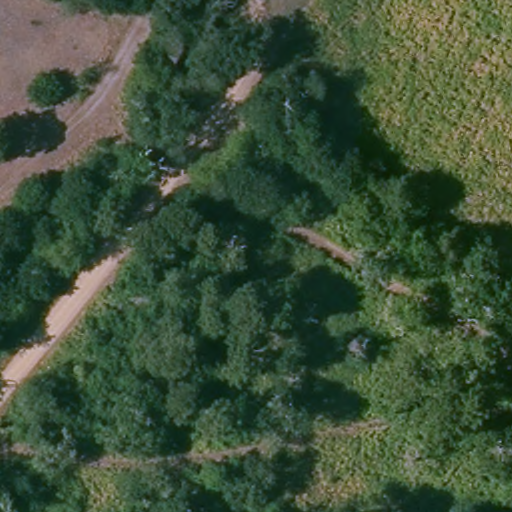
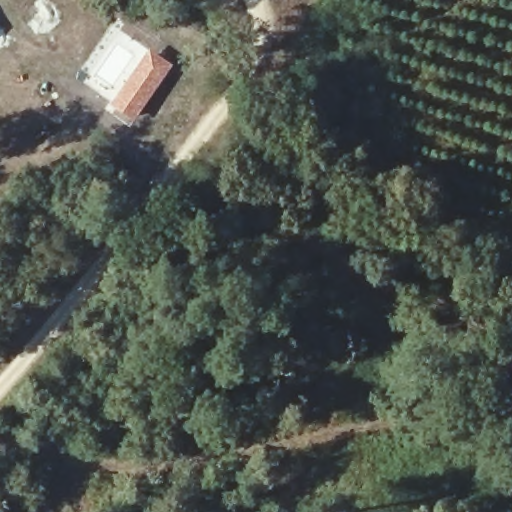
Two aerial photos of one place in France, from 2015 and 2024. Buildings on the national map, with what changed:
unchanged [(206,37),(172,30),(174,14),(189,15),(189,6),(211,10),(206,37)]
new [(174,65),(135,122),(113,106),(133,78),(153,56),(174,65)]

